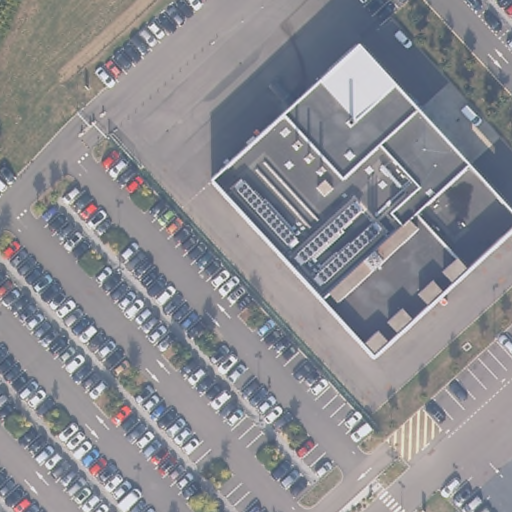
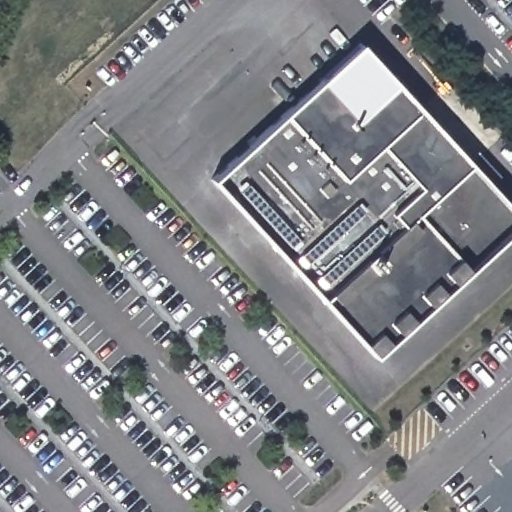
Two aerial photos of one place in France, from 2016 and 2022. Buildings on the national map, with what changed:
unchanged [(512,206),(512,230),(375,358),(211,179),(360,41),(512,206)]

